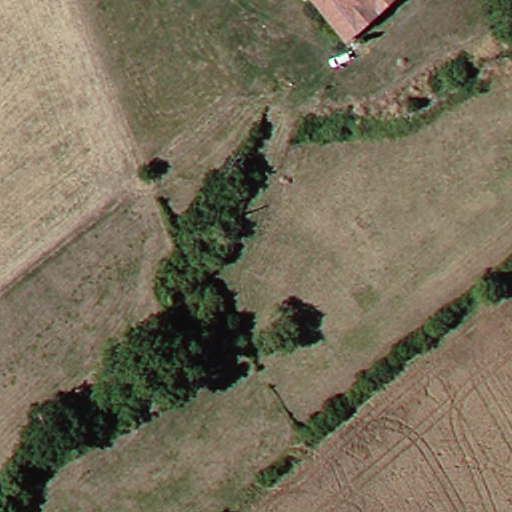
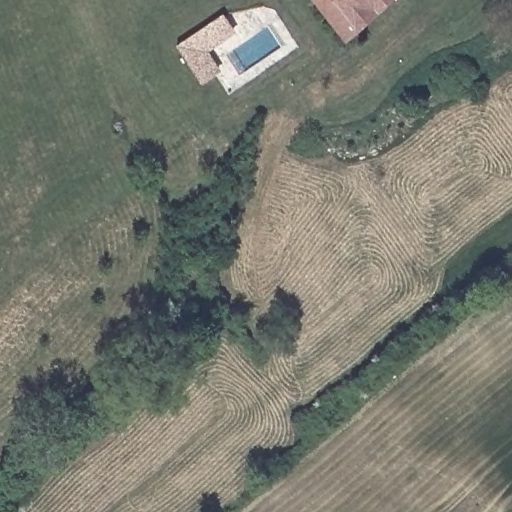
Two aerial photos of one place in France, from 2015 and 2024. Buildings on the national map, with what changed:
unchanged [(357,29),(332,0),(390,0),(357,29)]
new [(223,72),(204,85),(178,46),(225,15),(238,34),(210,52),(223,72)]

